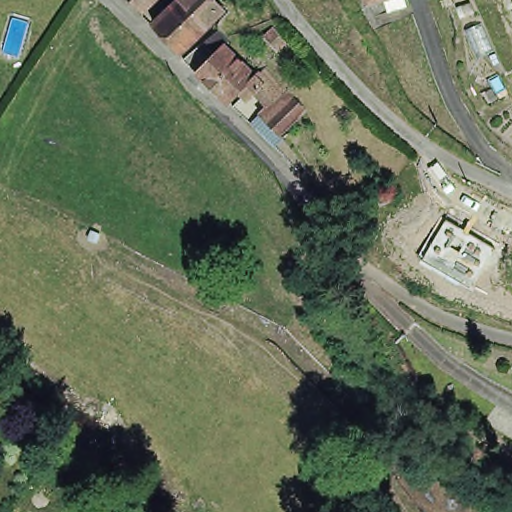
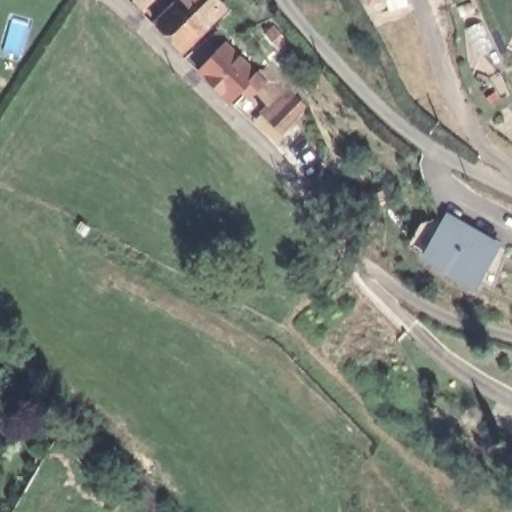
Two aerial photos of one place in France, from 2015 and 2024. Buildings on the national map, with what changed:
unchanged [(127,0),(153,0),(136,13),(127,0)]
unchanged [(231,14),(188,61),(153,24),(176,0),(218,0),(231,14)]
unchanged [(366,1),(366,0),(369,0),(366,1)]
unchanged [(385,0),(406,0),(407,2),(388,9),(385,0)]
unchanged [(284,45),(274,52),(264,39),(271,32),(284,45)]
unchanged [(223,45),(253,80),(263,72),(311,112),(283,135),(243,100),(231,113),(199,74),(223,45)]
new [(496,249),(473,288),(423,259),(406,249),(419,226),(437,222),(443,225),(446,220),(496,249)]

